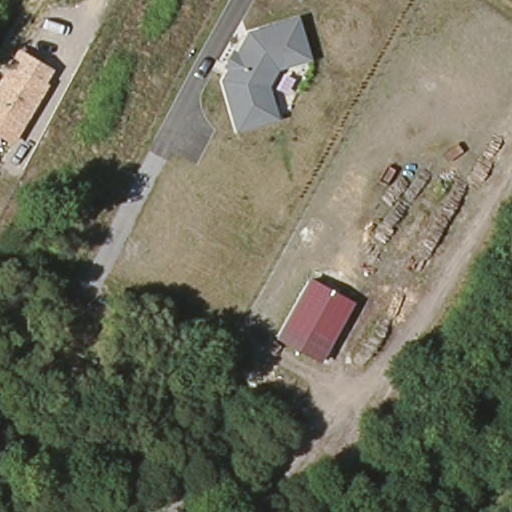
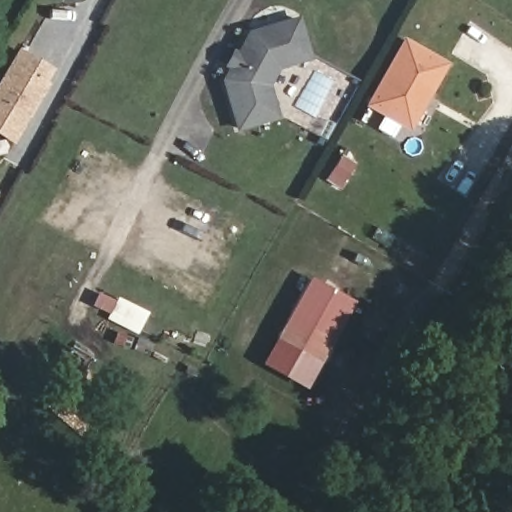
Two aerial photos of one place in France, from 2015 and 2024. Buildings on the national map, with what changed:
unchanged [(234,134),(218,83),(225,71),(221,67),(229,51),(234,54),(246,32),(297,18),(311,61),(277,72),(269,87),(279,120),(234,134)]
new [(400,39),(443,62),(406,129),(363,104),(400,39)]
unchanged [(44,82),(48,85),(13,145),(0,137),(0,78),(18,48),(53,69),(44,82)]
unchanged [(306,392),(262,367),(310,277),(354,302),(306,392)]

